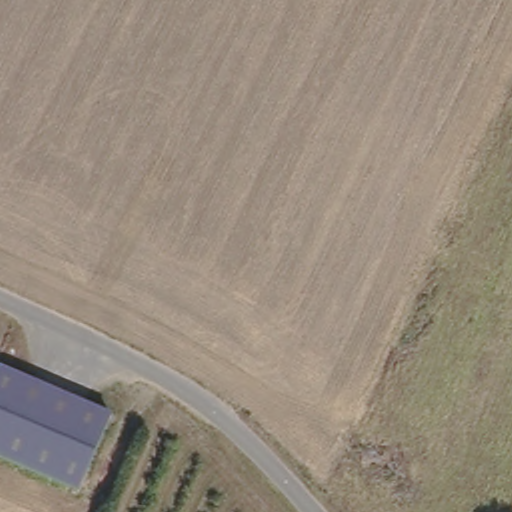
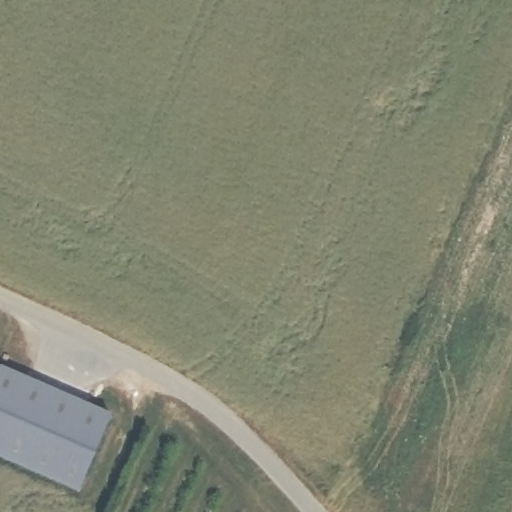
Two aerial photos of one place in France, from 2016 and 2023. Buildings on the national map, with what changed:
unchanged [(111,418),(79,493),(0,459),(0,371),(1,369),(111,418)]

